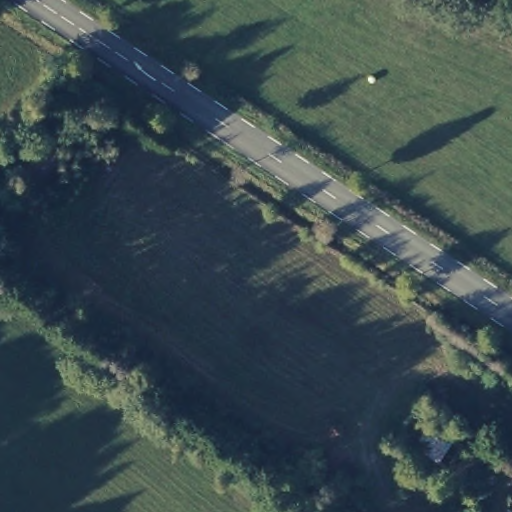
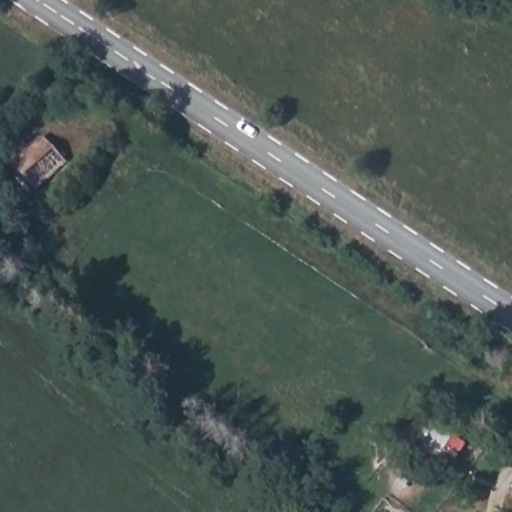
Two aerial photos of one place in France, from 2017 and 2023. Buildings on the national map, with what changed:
unchanged [(65,160),(35,185),(16,162),(45,138),(65,160)]
unchanged [(469,444),(450,475),(412,452),(432,424),(469,444)]

